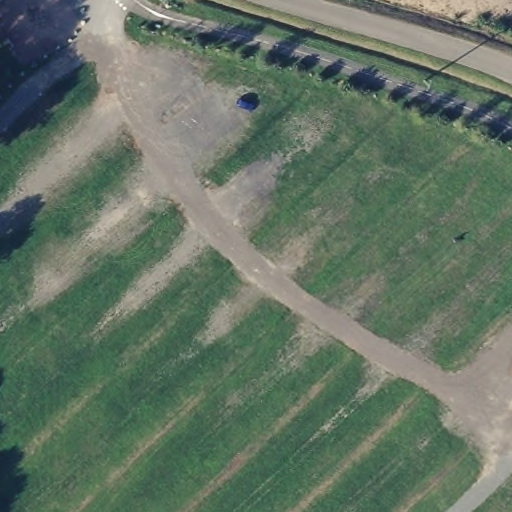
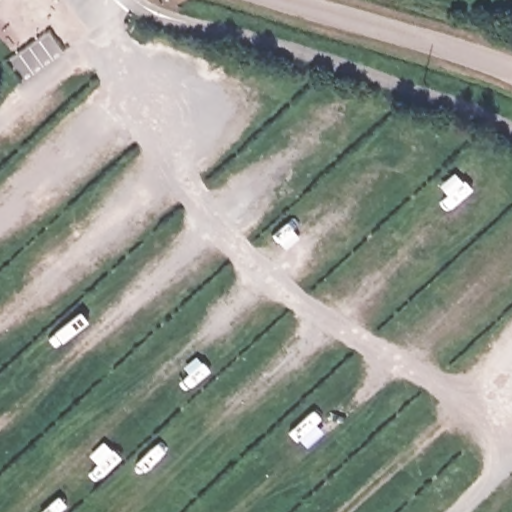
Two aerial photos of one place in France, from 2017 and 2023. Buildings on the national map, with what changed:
[]

